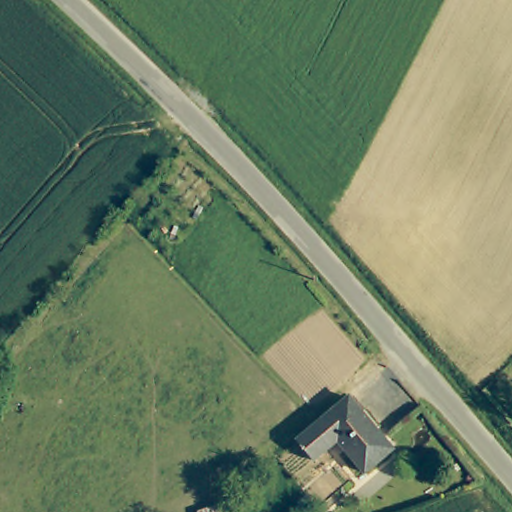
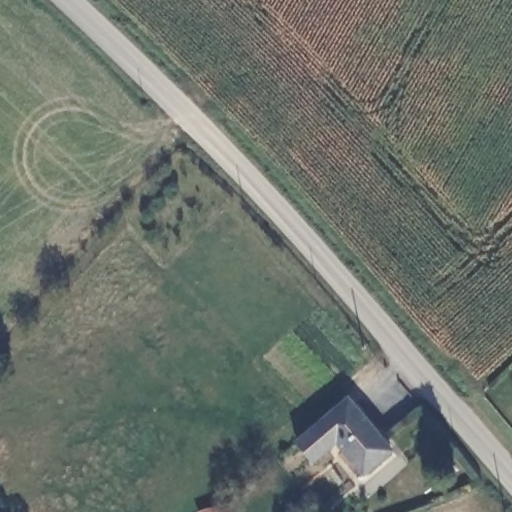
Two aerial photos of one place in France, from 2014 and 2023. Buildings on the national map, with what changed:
unchanged [(397,448),(371,469),(344,437),(320,457),(303,438),(353,396),(397,448)]

